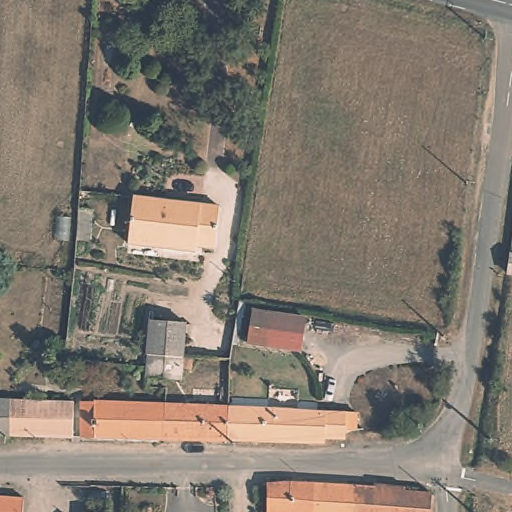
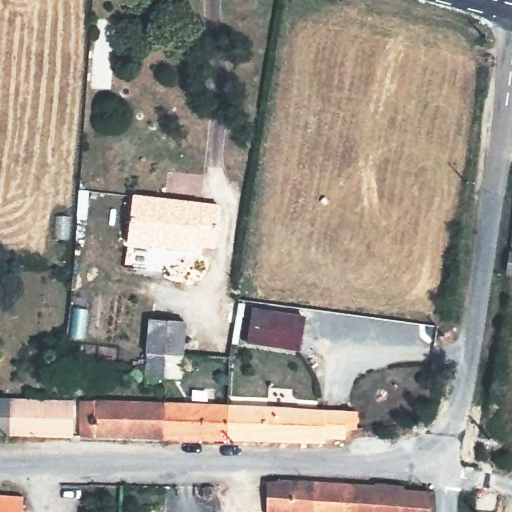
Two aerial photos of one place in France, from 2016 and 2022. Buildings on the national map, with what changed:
unchanged [(171,200),(170,205),(202,209),(202,204),(223,207),(217,248),(200,246),(199,253),(129,243),(135,197),(171,200)]
unchanged [(80,208),(95,208),(94,236),(79,235),(80,208)]
unchanged [(511,252),(512,252),(512,275),(507,274),(511,252)]
unchanged [(147,380),(147,373),(150,358),(153,325),(155,306),(191,310),(188,330),(184,361),(195,362),(193,374),(186,373),(184,385),(170,383),(167,396),(146,393),(147,380)]
unchanged [(303,351),(249,341),(254,310),(308,321),(303,351)]
unchanged [(74,438),(0,435),(0,400),(76,402),(74,438)]
unchanged [(84,437),(82,401),(167,404),(165,439),(84,437)]
unchanged [(167,404),(231,406),(229,440),(165,439),(167,404)]
unchanged [(231,406),(347,413),(347,440),(330,440),(330,443),(229,440),(231,406)]
unchanged [(291,481),(375,488),(377,484),(406,485),(407,490),(434,492),(431,512),(269,512),(267,484),(291,481)]
unchanged [(24,512),(0,512),(0,497),(25,499),(24,512)]

